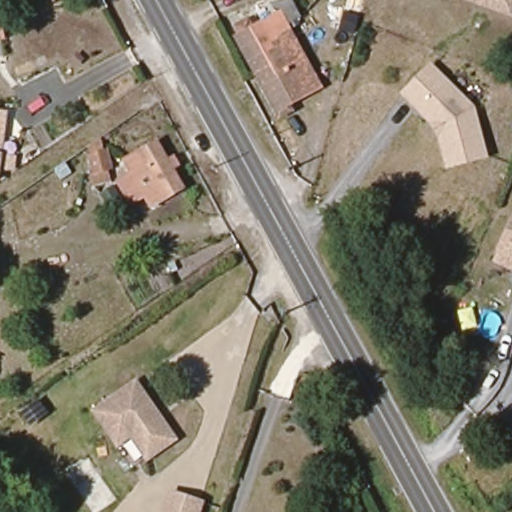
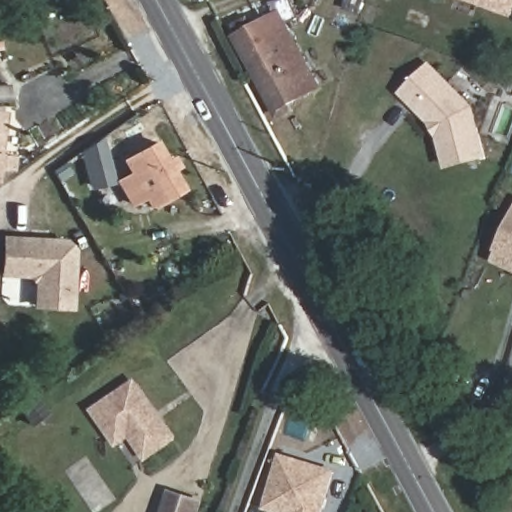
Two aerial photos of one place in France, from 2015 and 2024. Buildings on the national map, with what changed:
unchanged [(285,24),(288,25),(273,65),(294,104),(275,112),(234,38),(277,15),(273,5),(284,0),(290,0),(294,8),(299,16),(289,21),(285,24)]
unchanged [(511,14),(471,0),(512,0),(512,11),(511,14)]
demolished [(0,25),(5,25),(6,35),(8,45),(0,45),(0,25)]
unchanged [(273,65),(288,25),(322,88),(294,104),(273,65)]
unchanged [(446,170),(437,138),(428,122),(399,93),(431,61),(476,105),(489,159),(446,170)]
unchanged [(18,162),(16,177),(1,176),(0,188),(0,115),(6,115),(3,160),(18,162)]
unchanged [(183,184),(153,200),(149,193),(135,199),(122,176),(134,169),(128,155),(159,139),(183,184)]
unchanged [(96,154),(113,149),(114,160),(105,161),(110,184),(96,188),(89,159),(89,156),(96,154)]
unchanged [(491,262),(512,216),(512,272),(491,262)]
new [(33,284),(28,278),(0,277),(0,248),(1,234),(65,237),(76,249),(74,310),(32,307),(33,284)]
unchanged [(94,415),(108,404),(136,384),(173,437),(146,455),(131,435),(115,446),(101,427),(94,415)]
new [(279,453),(335,472),(324,512),(269,512),(264,510),(279,453)]
unchanged [(194,503),(192,512),(160,512),(166,494),(194,503)]

